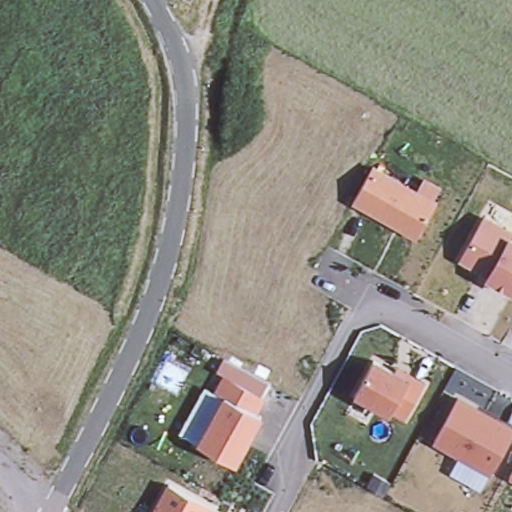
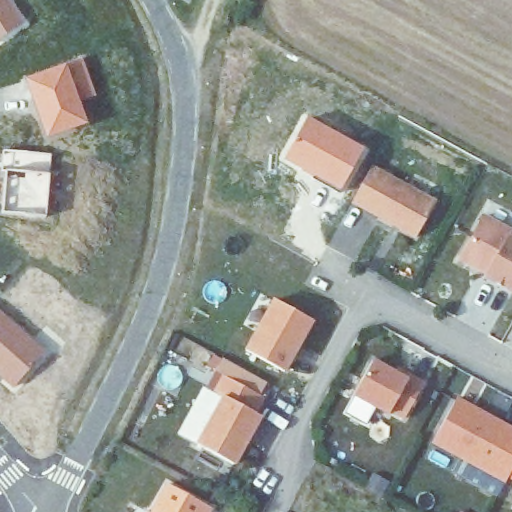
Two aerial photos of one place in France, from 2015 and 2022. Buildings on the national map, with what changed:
new [(0,38),(0,0),(11,0),(25,21),(0,38)]
new [(83,59),(95,95),(79,101),(88,122),(47,136),(28,78),(83,59)]
new [(362,147),(341,189),(286,159),(310,117),(362,147)]
new [(53,153),(48,215),(4,210),(6,169),(3,170),(3,149),(53,153)]
unchanged [(437,203),(417,239),(353,204),(372,168),(437,203)]
unchanged [(512,229),(512,238),(510,242),(512,243),(512,297),(484,281),(487,276),(458,261),(484,211),(512,229)]
new [(311,321),(285,370),(247,349),(257,331),(244,324),(260,294),(311,321)]
new [(14,389),(0,376),(0,311),(44,349),(14,389)]
unchanged [(392,410),(378,402),(376,406),(341,387),(359,352),(381,364),(383,359),(396,367),(411,375),(392,410)]
new [(216,371),(207,368),(213,355),(223,360),(223,359),(266,383),(260,395),(221,375),(212,390),(206,387),(216,371)]
unchanged [(268,398),(259,416),(261,417),(236,466),(194,443),(178,433),(203,386),(212,390),(221,375),(268,398)]
unchanged [(512,424),(512,438),(491,478),(431,446),(458,395),(512,424)]
unchanged [(508,478),(512,470),(512,481),(508,478)]
unchanged [(216,508),(213,512),(149,512),(166,482),(216,508)]

